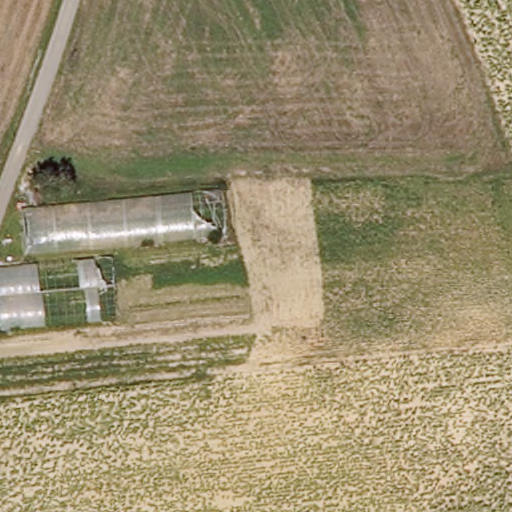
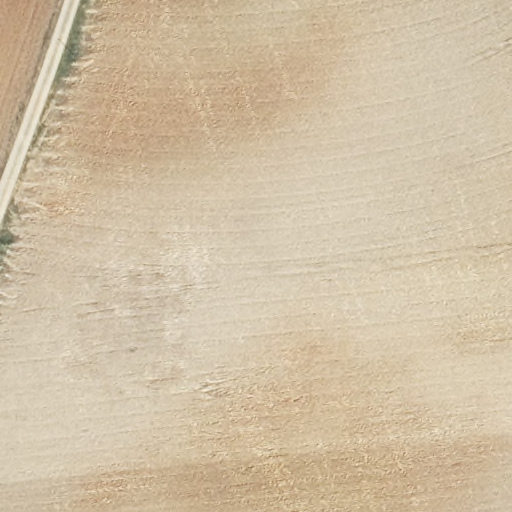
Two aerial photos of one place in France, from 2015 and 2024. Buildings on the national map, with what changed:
demolished [(239,234),(16,252),(13,207),(232,191),(239,234)]
demolished [(116,314),(0,320),(0,263),(112,254),(116,314)]

